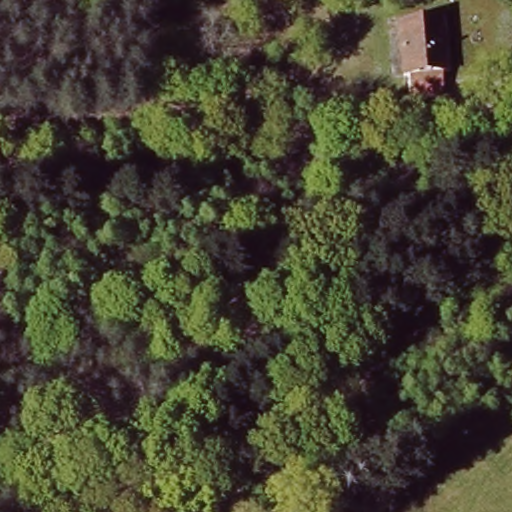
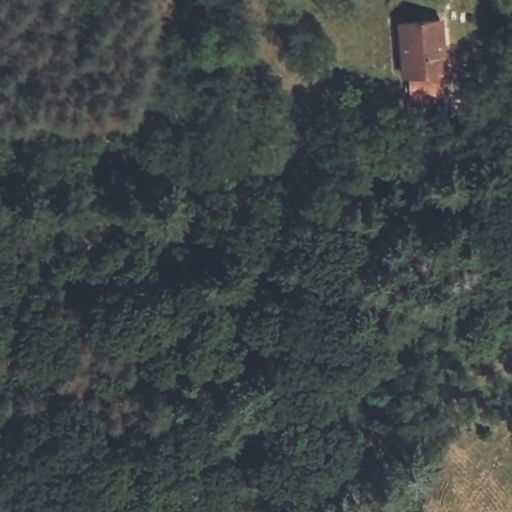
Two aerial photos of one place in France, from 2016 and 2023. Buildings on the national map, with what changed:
unchanged [(444,10),(451,64),(443,65),(447,95),(417,99),(412,67),(405,68),(398,16),(444,10)]

